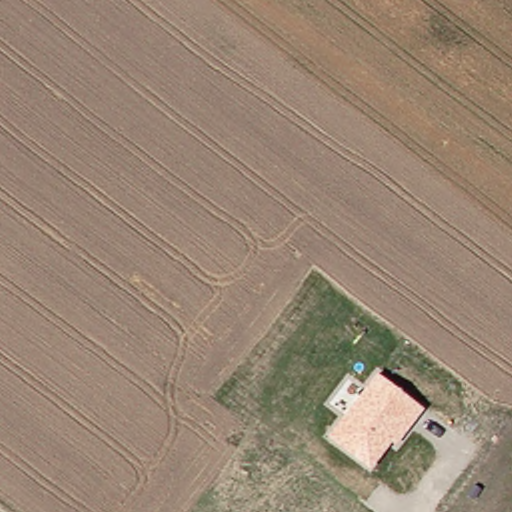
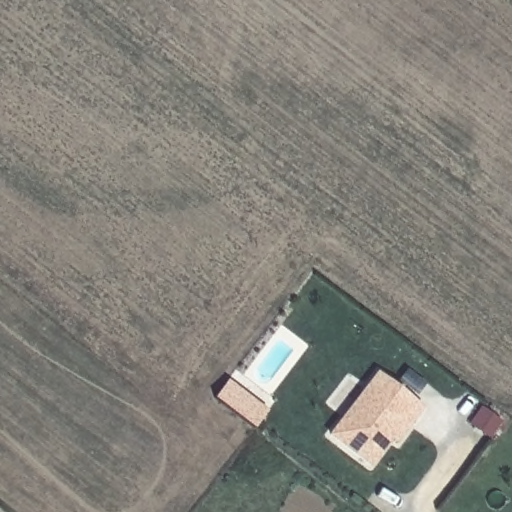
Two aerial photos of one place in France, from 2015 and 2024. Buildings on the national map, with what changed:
unchanged [(423,406),(395,444),(392,441),(369,469),(327,437),(375,372),(423,406)]
new [(233,381),(273,412),(261,428),(221,398),(233,381)]

